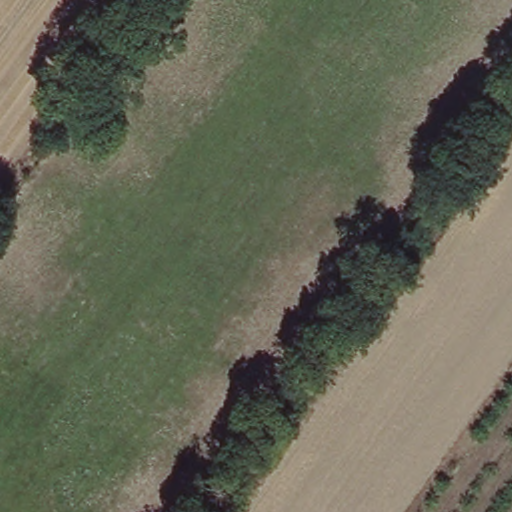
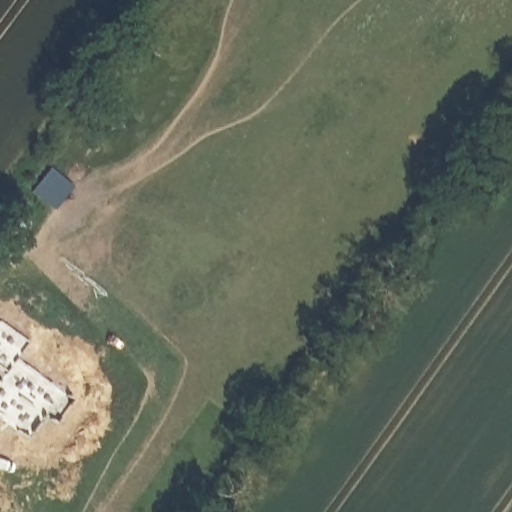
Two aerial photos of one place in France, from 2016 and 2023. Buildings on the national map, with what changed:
new [(73,188),(55,212),(32,194),(51,169),(73,188)]

